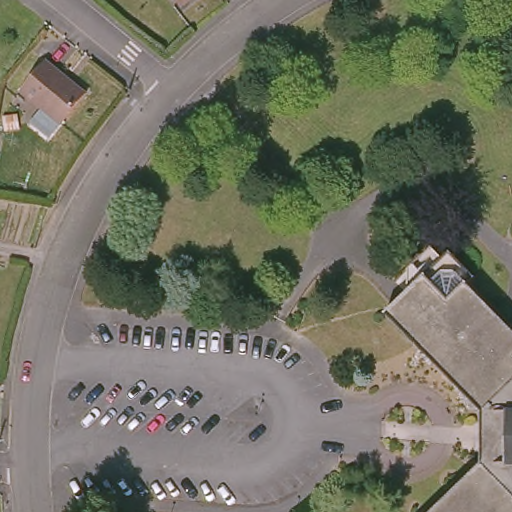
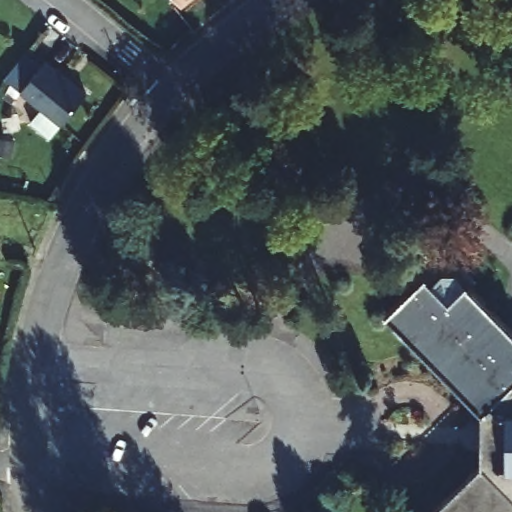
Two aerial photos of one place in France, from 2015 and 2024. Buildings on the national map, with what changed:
unchanged [(181,6),(179,2),(177,0),(189,0),(181,6)]
unchanged [(45,59),(85,93),(60,123),(20,90),(45,59)]
unchanged [(477,469),(477,420),(381,320),(403,297),(390,284),(423,249),(436,262),(443,254),(471,281),(463,289),(512,336),(512,512),(481,512),(463,482),(477,469)]
unchanged [(481,512),(433,512),(463,482),(481,512)]

